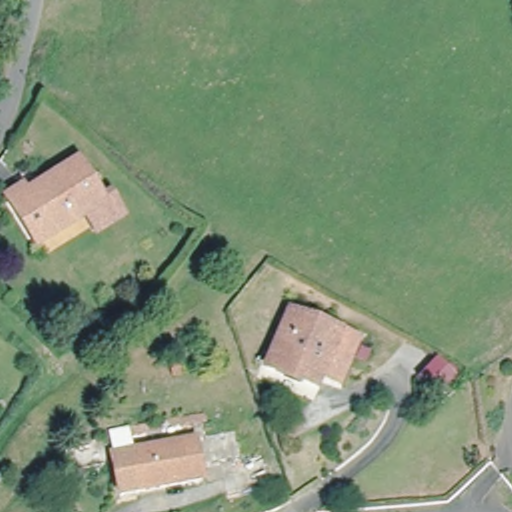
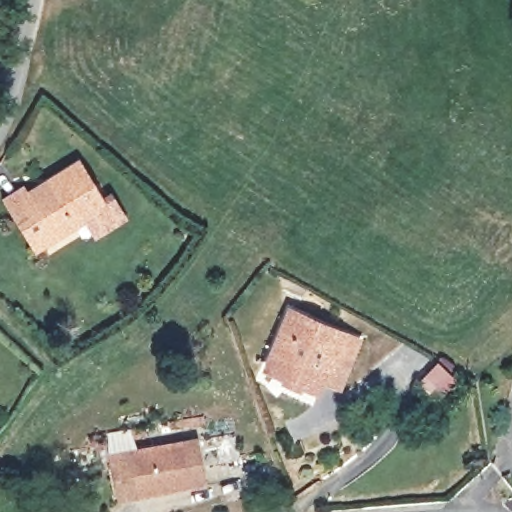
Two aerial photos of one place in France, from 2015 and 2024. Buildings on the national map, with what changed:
unchanged [(84,217),(36,247),(6,199),(22,189),(26,196),(75,165),(78,164),(102,204),(111,199),(123,217),(116,221),(95,234),(84,217)]
unchanged [(338,386),(320,378),(315,389),(267,368),(292,311),(359,341),(338,386)]
unchanged [(170,426),(169,422),(204,417),(204,421),(170,426)]
unchanged [(234,457),(201,463),(197,438),(230,432),(234,457)]
unchanged [(197,482),(115,496),(108,455),(189,440),(197,482)]

